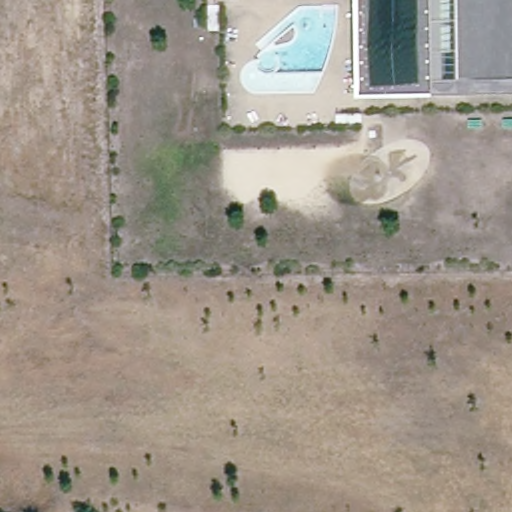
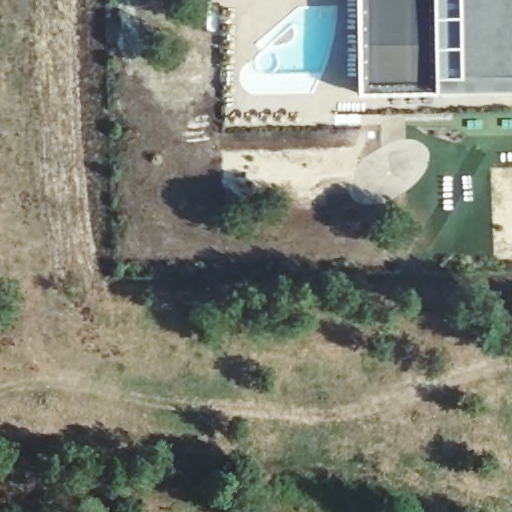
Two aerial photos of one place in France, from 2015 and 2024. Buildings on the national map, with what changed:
unchanged [(471,92),(367,94),(366,0),(512,0),(512,76),(471,77),(471,92)]
unchanged [(512,76),(512,91),(471,92),(471,77),(512,76)]

